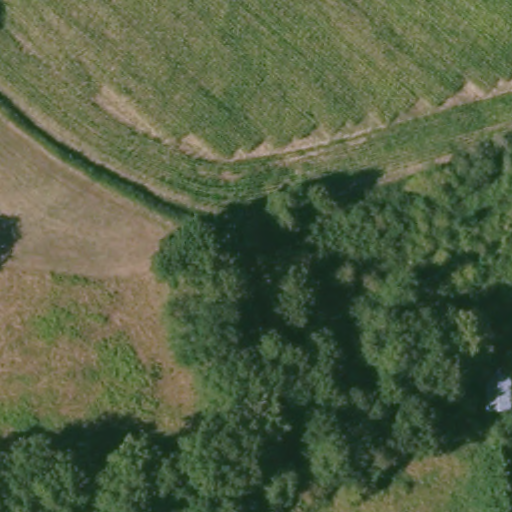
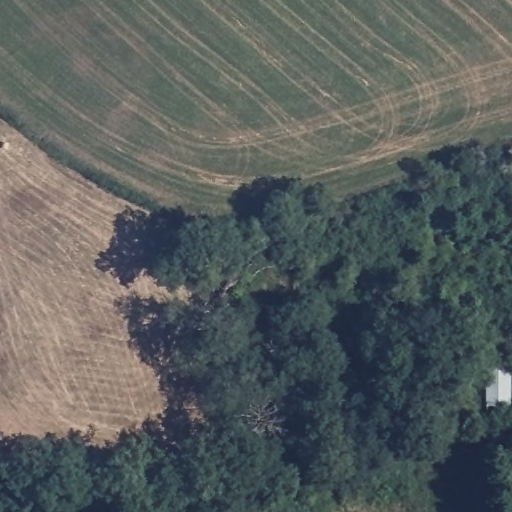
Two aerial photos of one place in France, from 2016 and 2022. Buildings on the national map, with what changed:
unchanged [(482,413),(478,362),(512,362),(512,407),(482,413)]

